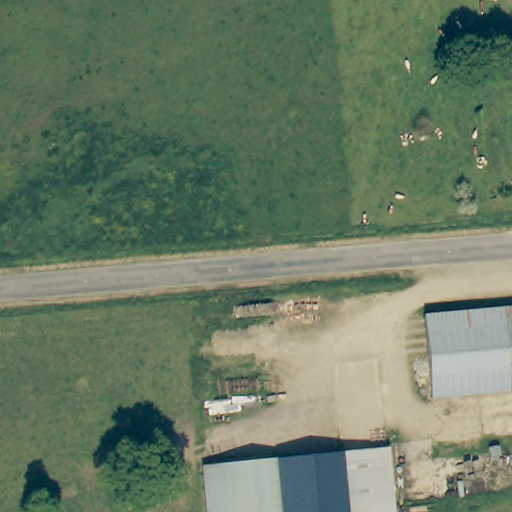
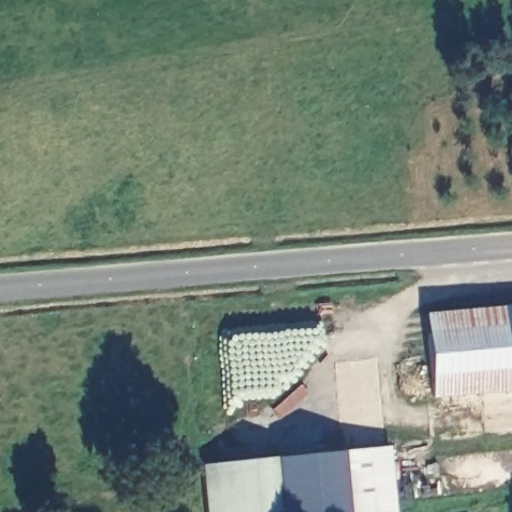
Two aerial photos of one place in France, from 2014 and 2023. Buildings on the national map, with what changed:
unchanged [(423,314),(512,306),(512,389),(431,396),(423,314)]
unchanged [(317,454),(389,446),(395,512),(323,512),(317,454)]
unchanged [(201,465),(317,454),(323,512),(206,512),(201,465)]

